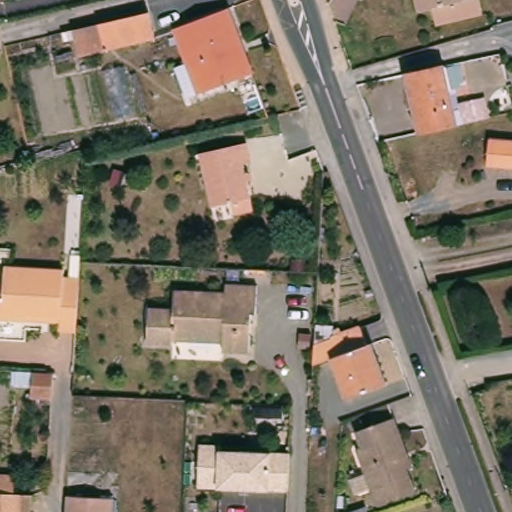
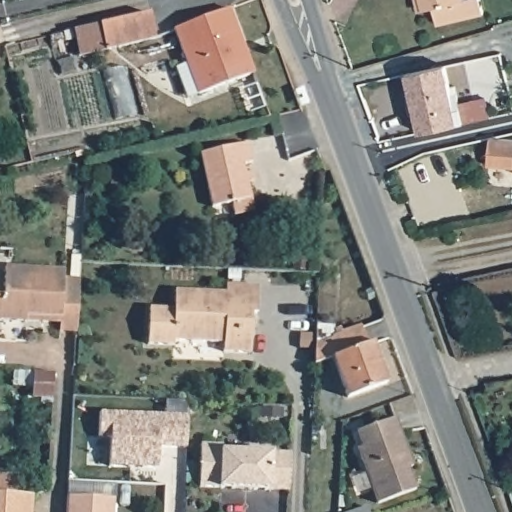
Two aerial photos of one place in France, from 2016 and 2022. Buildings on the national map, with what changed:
unchanged [(437,7),(427,10),(425,0),(484,0),(487,14),(441,25),(437,7)]
unchanged [(181,67),(191,62),(178,28),(233,7),(247,45),(257,73),(253,75),(203,94),(192,97),(181,67)]
unchanged [(67,37),(77,35),(104,29),(154,17),(160,44),(137,49),(109,55),(83,61),(79,44),(69,46),(67,37)]
unchanged [(405,74),(443,65),(448,87),(453,86),(457,103),(471,100),(475,120),(457,124),(418,132),(405,74)]
unchanged [(258,210),(239,215),(236,202),(216,207),(204,153),(252,142),(256,162),(248,164),(258,210)]
unchanged [(512,144),(512,171),(492,169),(495,142),(512,144)]
unchanged [(0,319),(0,294),(7,295),(9,266),(68,270),(68,277),(84,278),(80,331),(63,330),(64,322),(30,321),(0,319)]
unchanged [(261,313),(256,313),(253,353),(227,352),(227,342),(177,340),(177,345),(151,343),(153,307),(178,308),(179,290),(230,292),(231,284),(262,285),(261,313)]
unchanged [(351,398),(337,358),(318,365),(319,343),(321,325),(338,325),(340,336),(364,327),(371,346),(376,343),(391,383),(351,398)]
unchanged [(52,398),(32,397),(34,371),(54,372),(52,398)]
unchanged [(411,447),(406,448),(414,470),(376,483),(356,428),(361,427),(355,412),(393,398),(405,431),(411,447)]
new [(158,447),(156,467),(108,466),(110,437),(99,437),(100,412),(185,415),(184,447),(158,447)]
unchanged [(290,452),(289,472),(288,490),(199,486),(200,458),(201,448),(201,443),(223,445),(223,450),(289,452),(290,452)]
unchanged [(19,477),(18,493),(37,495),(36,512),(0,512),(0,476),(19,477)]
unchanged [(366,487),(371,501),(342,511),(337,496),(366,487)]
unchanged [(71,494),(118,497),(117,512),(70,512),(71,494)]

